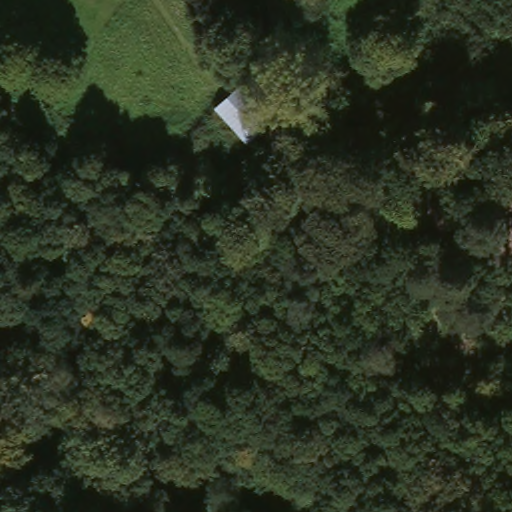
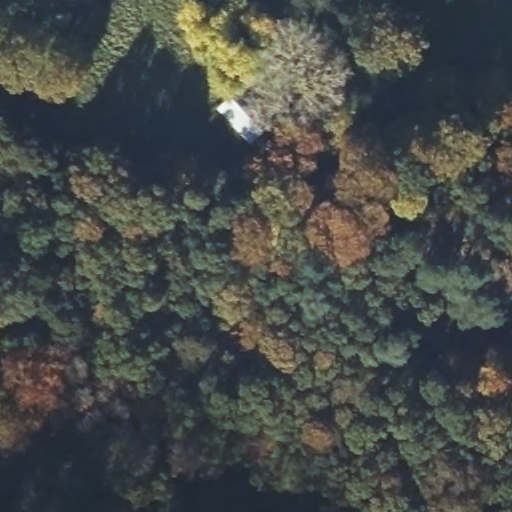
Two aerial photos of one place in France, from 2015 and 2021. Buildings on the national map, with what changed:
unchanged [(238,85),(270,123),(243,148),(209,111),(238,85)]

